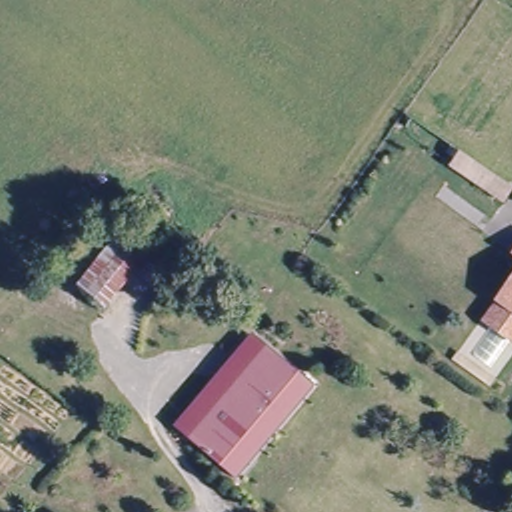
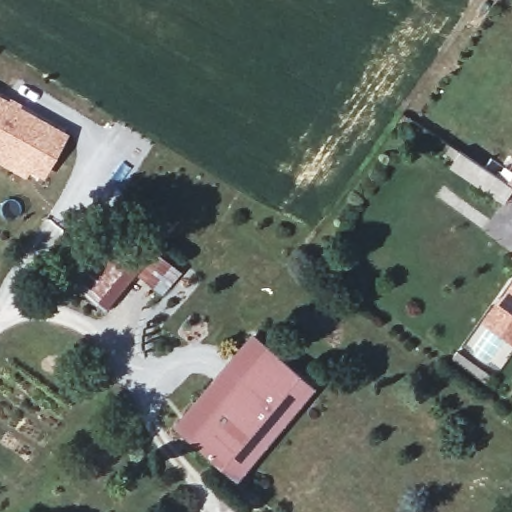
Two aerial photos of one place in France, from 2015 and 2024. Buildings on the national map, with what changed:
new [(70,131),(43,177),(33,172),(31,174),(27,172),(26,175),(0,161),(0,91),(15,99),(70,131)]
unchanged [(447,166),(457,149),(512,185),(512,187),(502,200),(447,166)]
unchanged [(141,264),(106,308),(75,285),(110,242),(141,264)]
unchanged [(509,332),(492,320),(486,316),(501,296),(500,294),(512,276),(512,336),(509,332)]
unchanged [(173,425),(251,331),(269,349),(191,443),(173,425)]
unchanged [(269,349),(305,381),(228,471),(226,473),(191,443),(269,349)]
unchanged [(454,365),(459,357),(496,384),(491,392),(454,365)]
unchanged [(305,381),(314,386),(237,479),(228,471),(305,381)]

